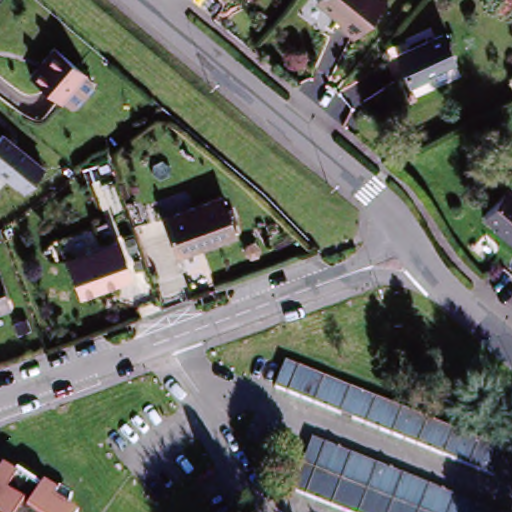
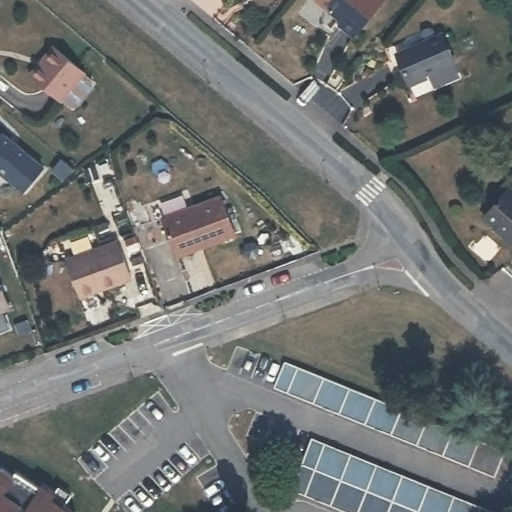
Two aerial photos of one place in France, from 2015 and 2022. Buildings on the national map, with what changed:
unchanged [(320,4),(324,0),(387,0),(389,2),(357,40),(344,29),(346,26),(339,20),(341,19),(338,16),(333,15),(320,4)]
unchanged [(425,83),(410,89),(397,59),(441,39),(454,66),(424,79),(425,83)]
unchanged [(58,46),(88,71),(64,100),(34,75),(58,46)]
unchanged [(0,140),(0,139),(42,173),(23,196),(0,177),(0,140)]
unchanged [(496,234),(483,223),(507,196),(512,200),(512,248),(496,234)]
unchanged [(230,240),(171,262),(157,223),(216,201),(230,240)]
unchanged [(66,264),(116,246),(131,284),(80,302),(66,264)]
unchanged [(0,321),(0,297),(8,318),(0,321)]
unchanged [(274,394),(284,365),(506,456),(494,483),(274,394)]
unchanged [(311,443),(483,512),(335,512),(290,494),(311,443)]
unchanged [(13,481),(15,476),(39,493),(42,489),(54,497),(50,503),(64,512),(0,512),(0,474),(0,473),(13,481)]

